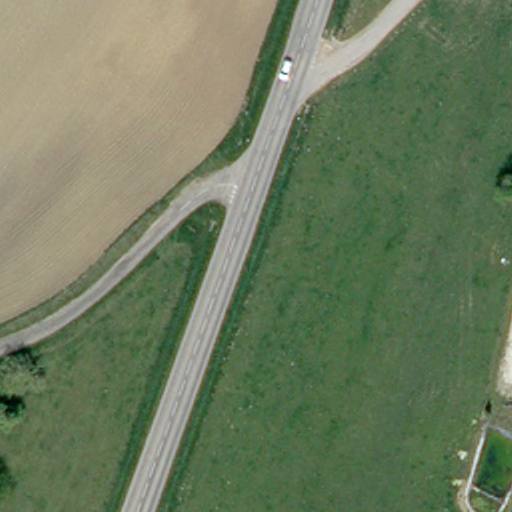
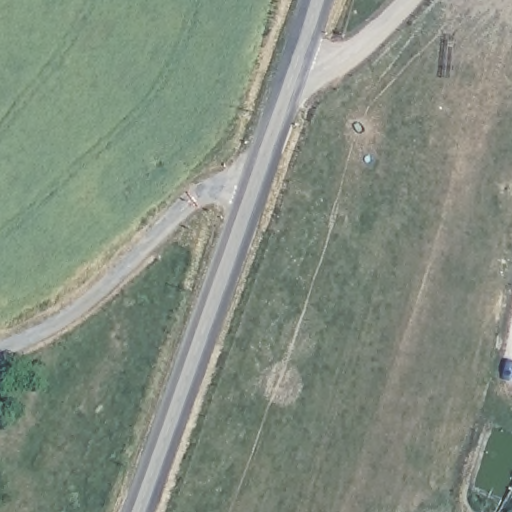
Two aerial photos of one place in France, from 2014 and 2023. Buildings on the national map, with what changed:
[]

